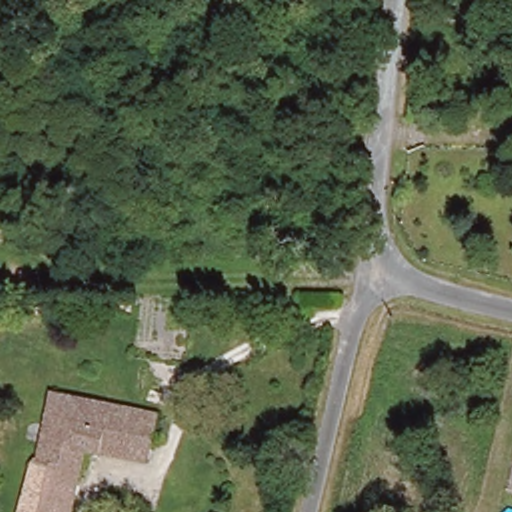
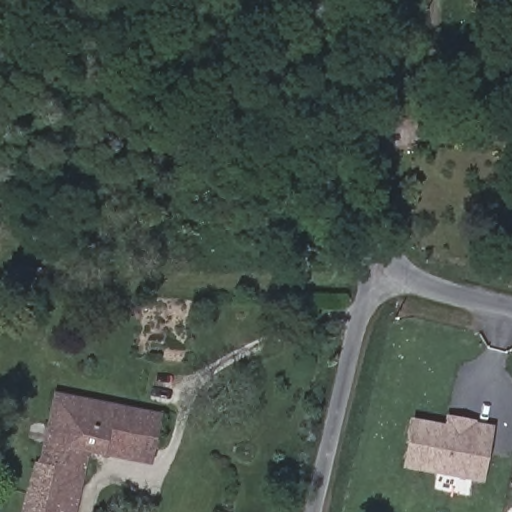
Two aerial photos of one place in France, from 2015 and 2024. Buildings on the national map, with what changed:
unchanged [(95,446),(76,512),(20,512),(36,450),(46,453),(66,390),(172,420),(166,441),(118,428),(111,451),(95,446)]
new [(409,418),(444,424),(446,415),(476,419),(476,422),(493,425),(482,482),(403,468),(409,418)]
unchanged [(159,464),(111,451),(118,428),(166,441),(159,464)]

